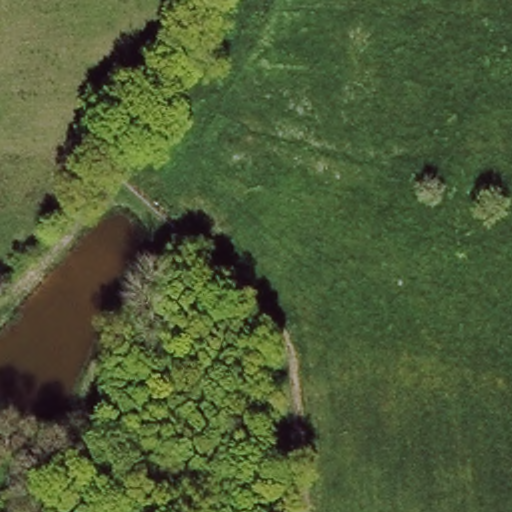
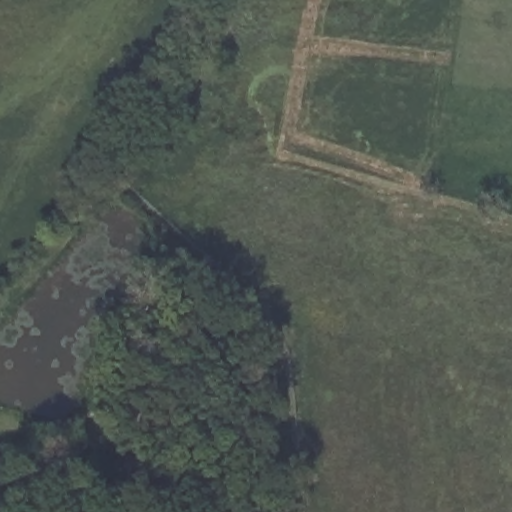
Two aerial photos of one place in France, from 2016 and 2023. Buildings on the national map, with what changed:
[]

